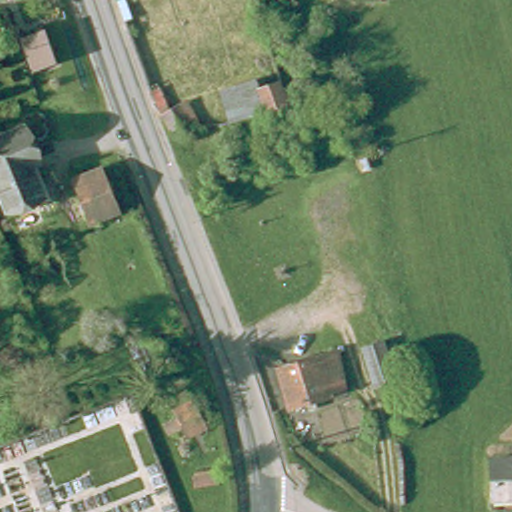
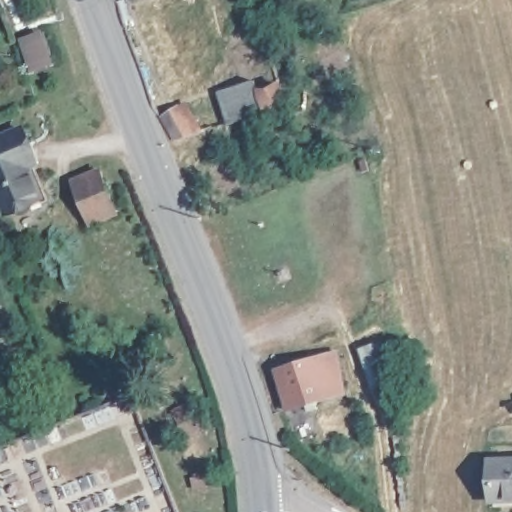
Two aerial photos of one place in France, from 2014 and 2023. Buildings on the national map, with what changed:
unchanged [(14,34),(35,28),(45,63),(24,69),(14,34)]
unchanged [(228,87),(264,77),(267,86),(280,82),(287,101),(273,105),(237,115),(228,87)]
unchanged [(186,130),(169,135),(155,114),(173,104),(186,130)]
unchanged [(27,135),(42,169),(34,172),(49,205),(45,207),(15,220),(0,188),(0,147),(15,140),(27,135)]
unchanged [(80,187),(107,176),(124,217),(97,229),(80,187)]
unchanged [(365,352),(386,347),(395,377),(373,383),(365,352)]
unchanged [(293,414),(280,372),(340,356),(352,394),(293,414)]
unchanged [(499,465),(512,464),(512,504),(500,505),(497,505),(494,465),(499,465)]

